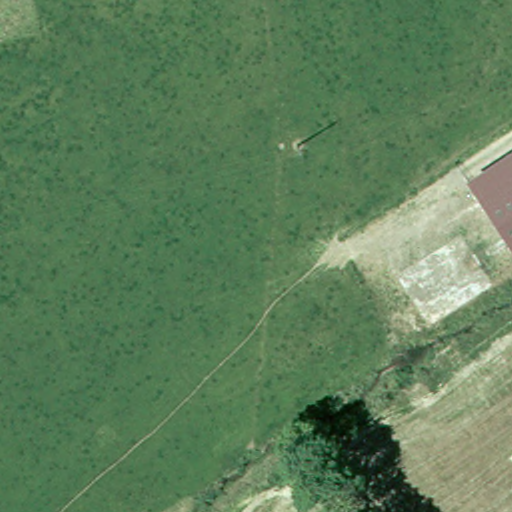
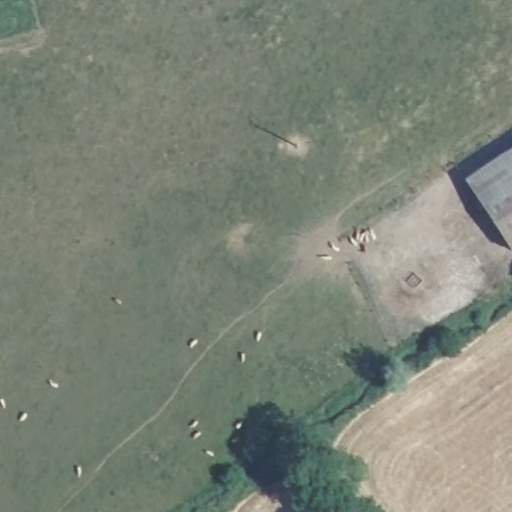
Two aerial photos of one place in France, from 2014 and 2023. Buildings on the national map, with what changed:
unchanged [(512,237),(477,184),(512,162),(512,237)]

